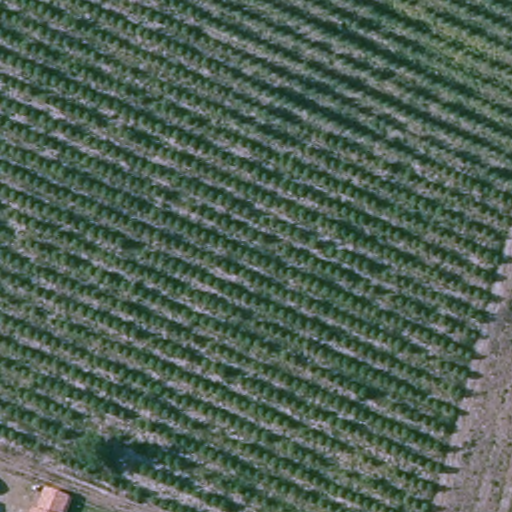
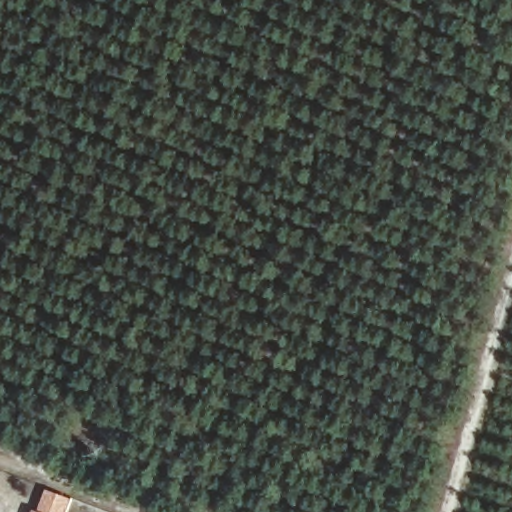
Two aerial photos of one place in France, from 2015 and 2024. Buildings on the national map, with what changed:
unchanged [(31,512),(31,511),(34,512),(31,512)]

